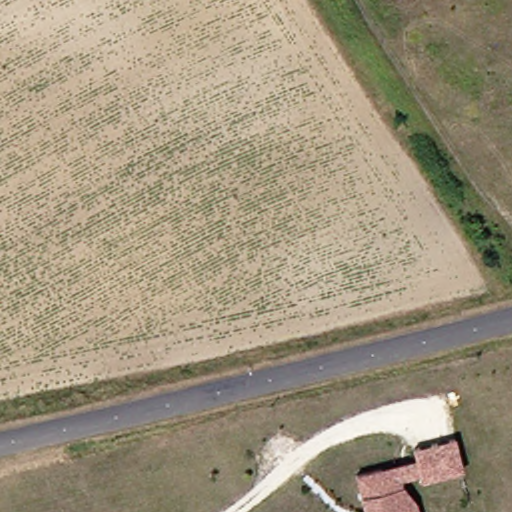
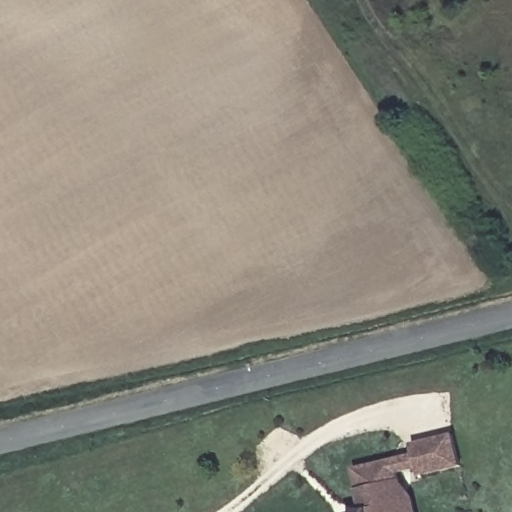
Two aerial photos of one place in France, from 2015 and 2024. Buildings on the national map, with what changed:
unchanged [(458,437),(465,467),(425,477),(417,446),(458,437)]
unchanged [(360,469),(385,464),(400,460),(402,468),(405,482),(418,500),(421,512),(370,512),(360,469)]

